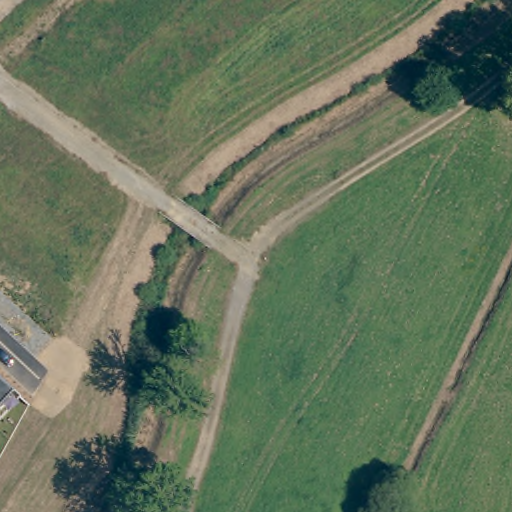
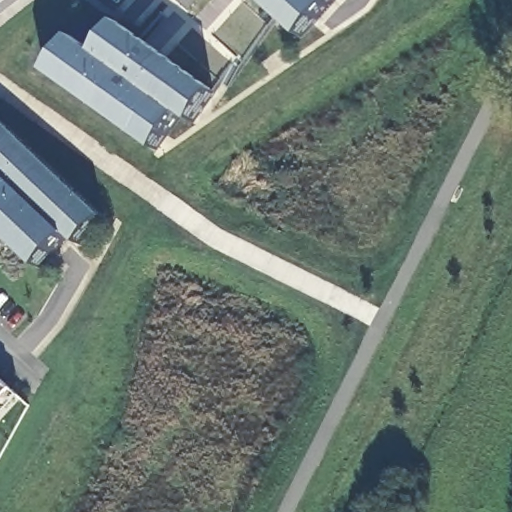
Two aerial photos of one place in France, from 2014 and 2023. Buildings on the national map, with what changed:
new [(299,37),(258,0),(333,0),(299,37)]
new [(94,53),(115,22),(213,91),(192,123),(180,114),(179,116),(156,150),(44,72),(70,36),(94,53)]
new [(78,244),(68,235),(67,235),(38,268),(0,232),(0,119),(103,216),(78,244)]
unchanged [(10,390),(17,395),(0,414),(0,381),(10,390)]

